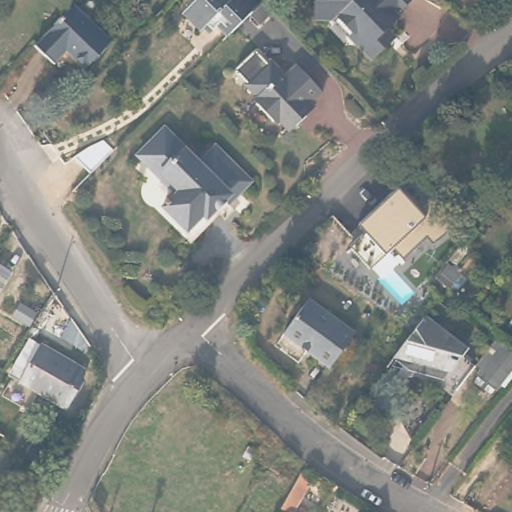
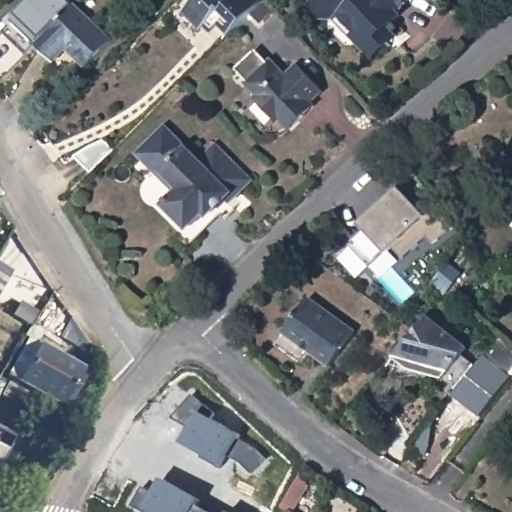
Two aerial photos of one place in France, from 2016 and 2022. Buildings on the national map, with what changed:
new [(41,42),(34,48),(8,21),(14,15),(27,0),(69,0),(74,7),(41,42)]
unchanged [(183,13),(188,8),(195,0),(261,0),(261,1),(228,35),(222,29),(218,25),(210,32),(206,27),(202,31),(183,13)]
unchanged [(389,41),(372,58),(358,43),(358,32),(347,20),(340,13),(321,12),(321,0),(409,0),(397,12),(400,15),(388,26),(397,34),(389,41)]
unchanged [(91,24),(111,44),(84,72),(66,56),(55,68),(34,48),(74,7),(91,24)]
unchanged [(304,114),(288,131),(278,120),(275,123),(252,99),(255,96),(243,84),(245,82),(233,70),(251,52),(263,65),(268,60),(283,76),(295,65),(320,91),(309,103),(313,107),(304,114)]
unchanged [(202,166),(218,149),(254,184),(231,207),(237,212),(228,222),(214,208),(204,218),(196,225),(193,227),(189,229),(186,229),(182,227),(179,222),(179,217),(180,213),(170,203),(175,194),(170,182),(161,179),(141,158),(166,132),(202,166)]
new [(90,143),(104,136),(115,147),(92,170),(75,153),(90,143)]
unchanged [(372,266),(353,246),(368,231),(362,224),(400,188),(419,209),(436,196),(458,223),(434,242),(427,234),(404,256),(394,247),(388,252),(372,266)]
unchanged [(0,285),(0,274),(5,277),(0,285)]
unchanged [(56,297),(81,331),(90,343),(86,348),(83,345),(68,337),(55,330),(59,321),(46,314),(49,310),(46,308),(31,325),(26,320),(48,293),(53,290),(56,297)]
unchanged [(356,340),(331,373),(308,356),(301,366),(278,349),(310,305),(356,340)]
unchanged [(394,362),(409,340),(419,327),(434,337),(436,335),(459,352),(453,365),(448,363),(447,364),(467,378),(463,384),(453,397),(434,384),(430,389),(417,379),(412,385),(399,376),(389,368),(394,362)]
unchanged [(81,373),(61,411),(8,383),(29,345),(81,373)]
unchanged [(512,365),(512,372),(495,395),(494,394),(485,406),(466,392),(475,380),(469,375),(490,347),(512,365)]
new [(208,417),(240,433),(236,440),(251,446),(264,459),(250,472),(239,463),(227,457),(222,467),(180,442),(188,428),(172,417),(191,393),(214,413),(208,417)]
unchanged [(430,416),(415,436),(399,411),(408,400),(430,416)]
new [(143,486),(154,491),(161,477),(200,499),(198,505),(210,512),(144,512),(131,505),(143,486)]
unchanged [(306,486),(309,488),(295,512),(281,512),(302,477),(309,481),(306,486)]

